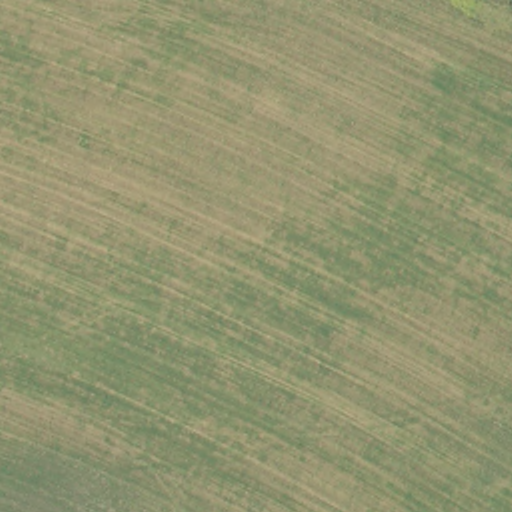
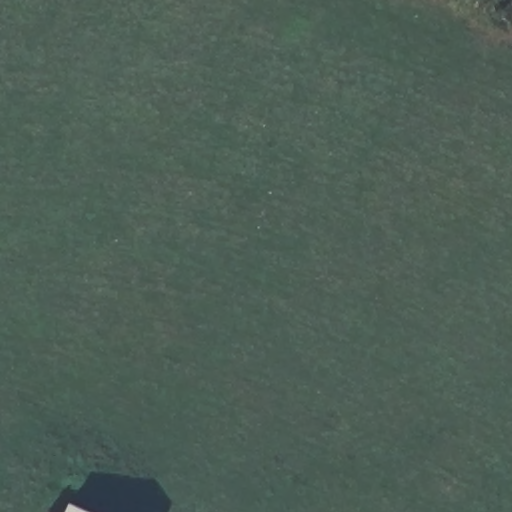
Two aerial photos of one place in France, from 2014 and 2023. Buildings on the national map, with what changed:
new [(87,512),(65,512),(68,504),(87,512)]

